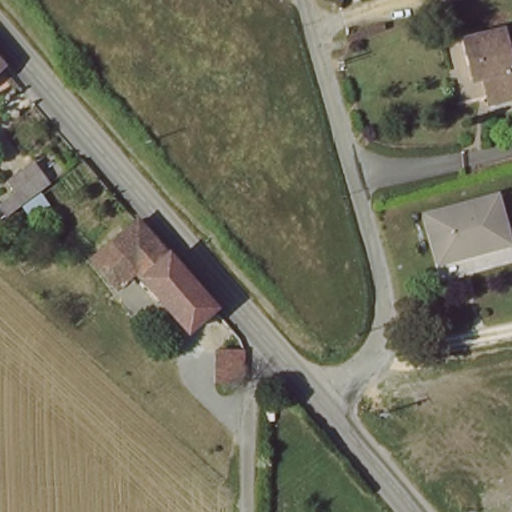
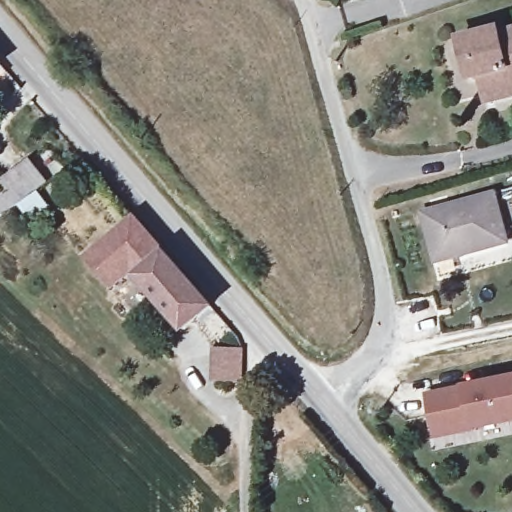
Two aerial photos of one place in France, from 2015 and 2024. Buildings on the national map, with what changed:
unchanged [(512,102),(481,111),(465,50),(503,40),(506,46),(512,43),(512,102)]
unchanged [(4,66),(0,70),(0,62),(4,66)]
unchanged [(17,204),(1,216),(0,215),(0,197),(8,191),(1,183),(18,171),(30,163),(46,183),(36,190),(17,204)]
new [(512,220),(505,198),(512,195),(512,220)]
unchanged [(506,243),(438,262),(426,217),(494,198),(506,243)]
unchanged [(124,284),(95,253),(137,218),(213,305),(187,330),(143,278),(150,276),(144,269),(124,284)]
unchanged [(245,351),(238,385),(195,379),(207,348),(245,351)]
new [(462,387),(512,377),(512,423),(472,433),(436,440),(426,394),(462,387)]

